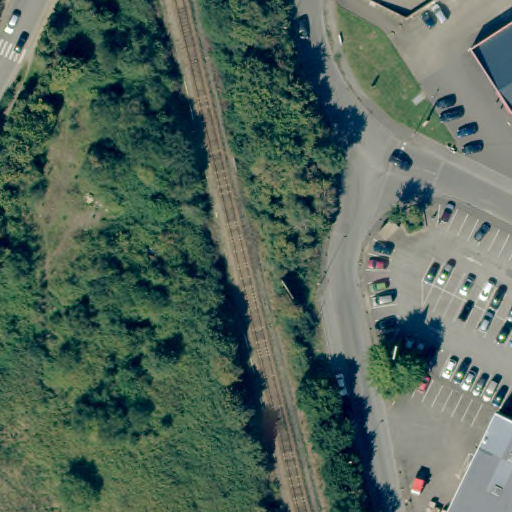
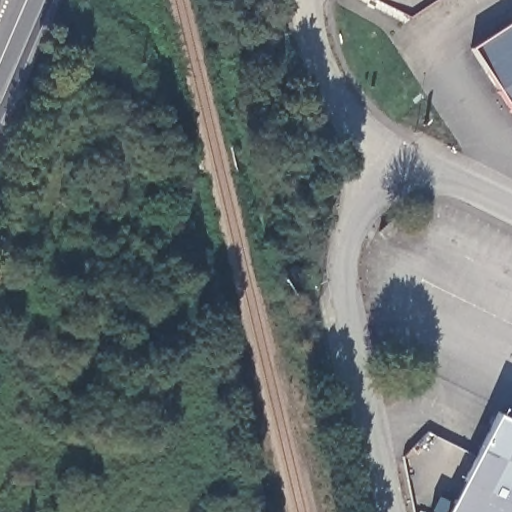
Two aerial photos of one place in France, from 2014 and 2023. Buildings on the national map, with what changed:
unchanged [(382,0),(431,0),(403,18),(382,0)]
unchanged [(469,46),(512,19),(512,109),(469,46)]
unchanged [(115,42),(107,61),(81,50),(89,30),(115,42)]
unchanged [(498,417),(512,423),(512,475),(493,512),(452,512),(498,417)]
unchanged [(512,475),(512,512),(493,512),(512,475)]

